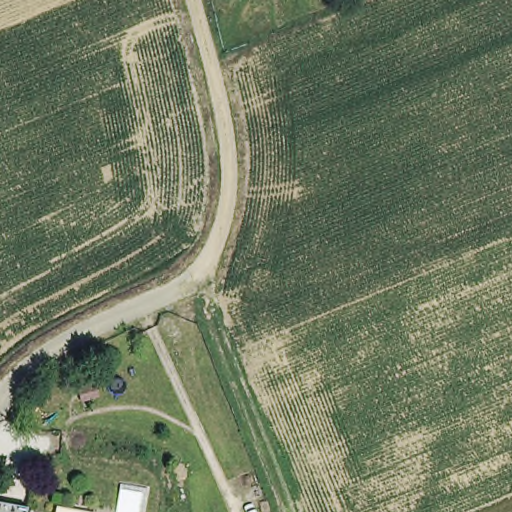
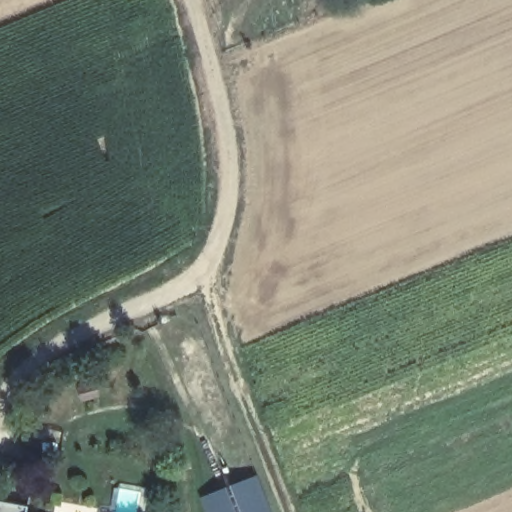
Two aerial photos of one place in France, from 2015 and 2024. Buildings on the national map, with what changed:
new [(271,512),(202,512),(196,498),(258,475),(271,512)]

